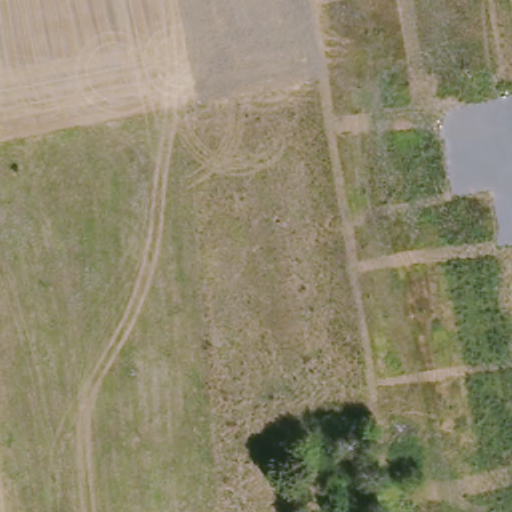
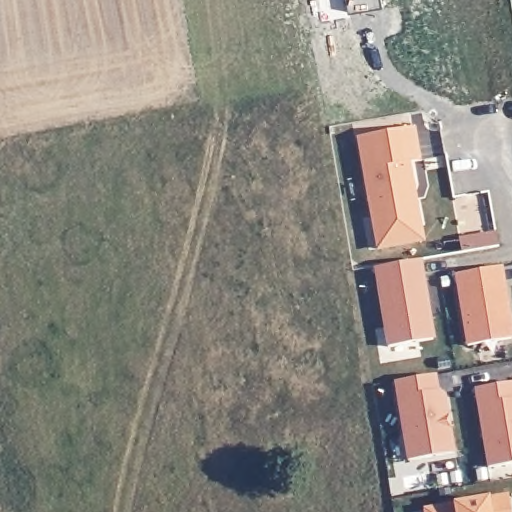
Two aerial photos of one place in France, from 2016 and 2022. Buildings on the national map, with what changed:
new [(376,250),(355,139),(415,129),(420,160),(410,162),(423,242),(376,250)]
new [(421,262),(433,338),(386,347),(373,268),(421,262)]
new [(502,267),(512,332),(512,339),(466,346),(455,275),(502,267)]
new [(435,376),(438,392),(445,396),(455,453),(405,461),(392,382),(435,376)]
new [(512,384),(512,463),(486,467),(473,389),(512,384)]
new [(421,508),(452,504),(486,498),(507,495),(510,512),(422,512),(421,508)]

